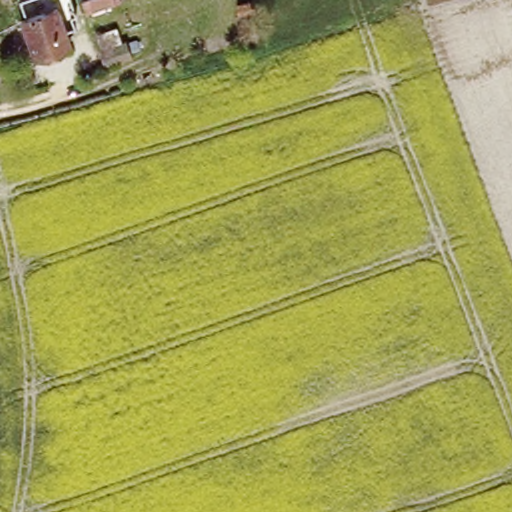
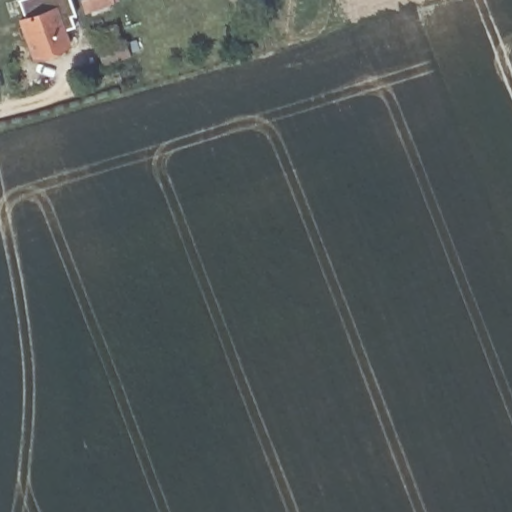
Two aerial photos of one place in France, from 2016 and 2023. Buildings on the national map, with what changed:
unchanged [(96,4),(95,0),(106,0),(96,4)]
unchanged [(65,14),(74,50),(31,62),(21,26),(65,14)]

